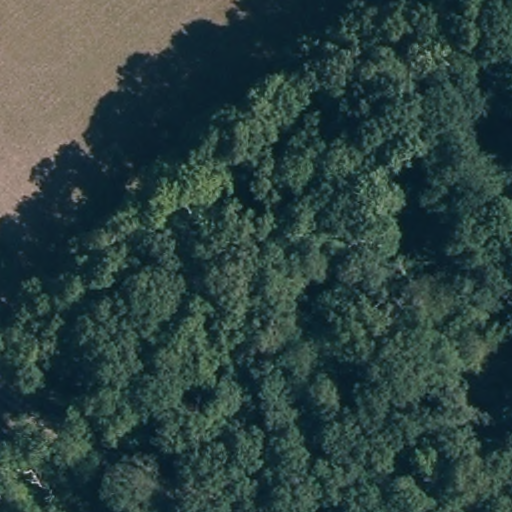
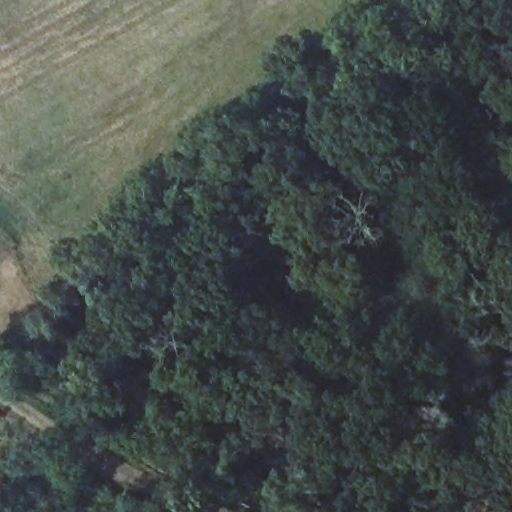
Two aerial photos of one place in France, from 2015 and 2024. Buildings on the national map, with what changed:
[]

